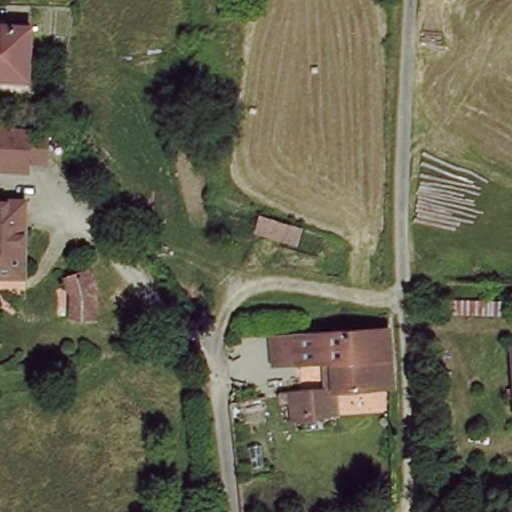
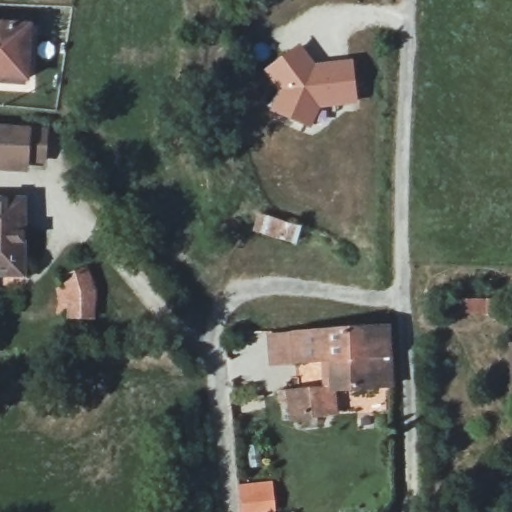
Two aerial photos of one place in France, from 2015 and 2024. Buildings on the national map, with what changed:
unchanged [(31,79),(0,78),(0,26),(32,25),(31,79)]
new [(300,44),(315,64),(353,58),(358,104),(319,110),(310,129),(267,109),(276,92),(262,71),(300,44)]
unchanged [(39,165),(0,164),(0,133),(39,137),(39,165)]
unchanged [(0,201),(26,203),(26,265),(26,275),(0,275),(0,201)]
unchanged [(256,229),(261,214),(297,225),(292,241),(256,229)]
demolished [(149,233),(181,277),(161,292),(130,246),(149,233)]
unchanged [(87,268),(107,292),(105,316),(79,315),(79,297),(68,283),(87,268)]
unchanged [(396,390),(338,393),(336,362),(301,361),(297,331),(381,328),(396,390)]
unchanged [(330,414),(308,416),(305,396),(330,394),(330,414)]

